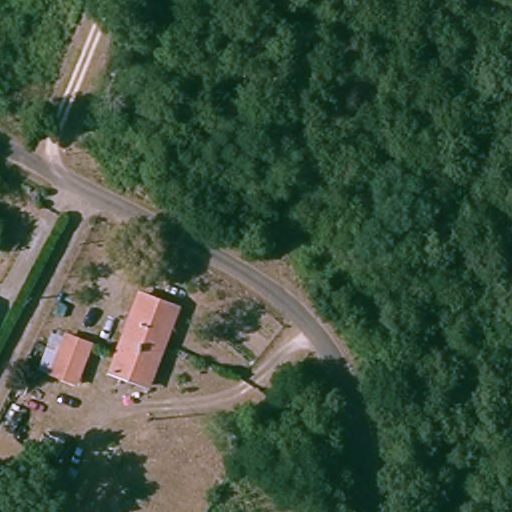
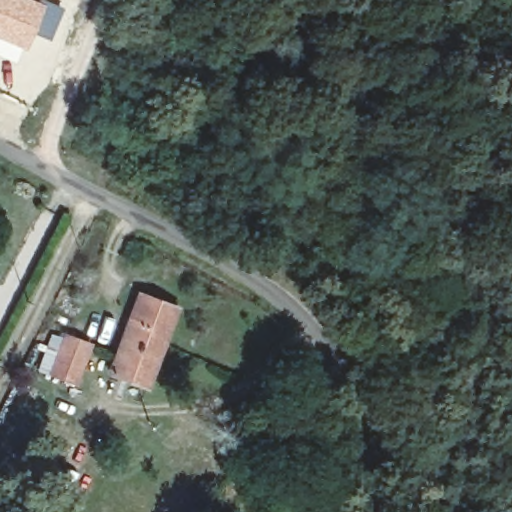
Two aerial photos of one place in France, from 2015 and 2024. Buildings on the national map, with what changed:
new [(62,8),(50,40),(34,34),(25,52),(16,49),(12,60),(0,55),(0,0),(41,0),(62,8)]
unchanged [(151,386),(112,377),(132,293),(172,303),(151,386)]
unchanged [(81,344),(72,385),(47,380),(56,337),(81,344)]

